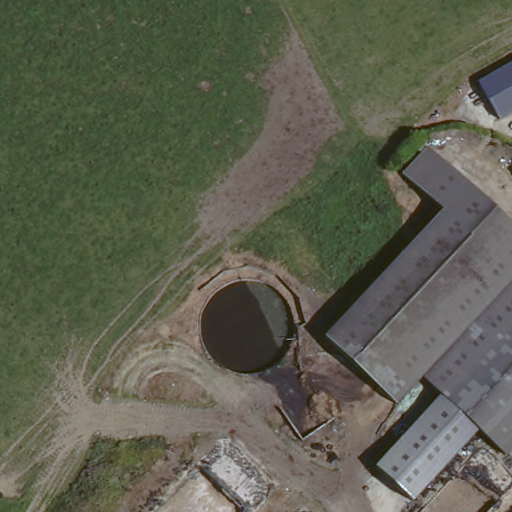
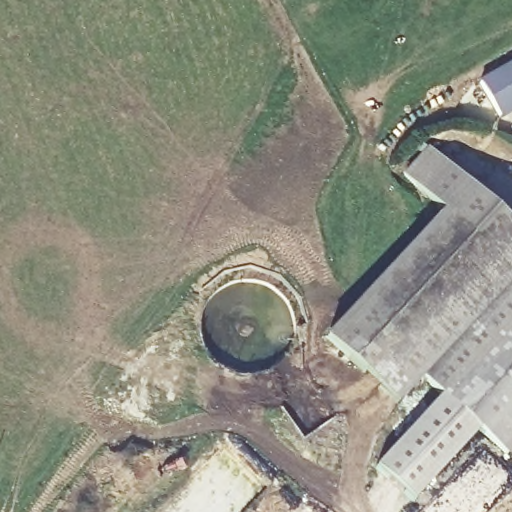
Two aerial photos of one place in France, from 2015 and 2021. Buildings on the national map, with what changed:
unchanged [(512,115),(498,124),(477,88),(512,67),(512,115)]
unchanged [(406,175),(432,148),(472,185),(446,212),(406,175)]
unchanged [(472,185),(512,224),(512,448),(505,455),(479,435),(418,501),(374,465),(438,397),(422,378),(394,407),(325,342),(446,212),(472,185)]

